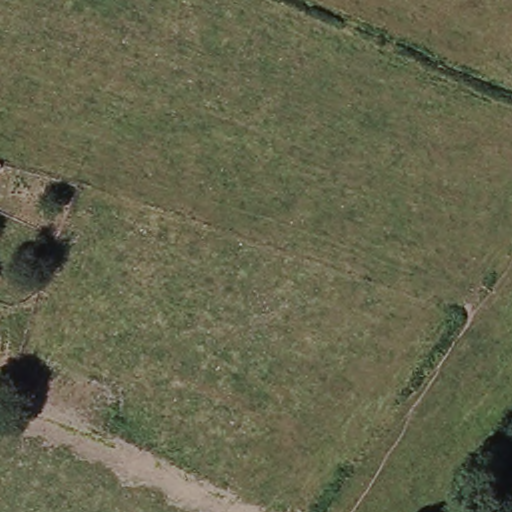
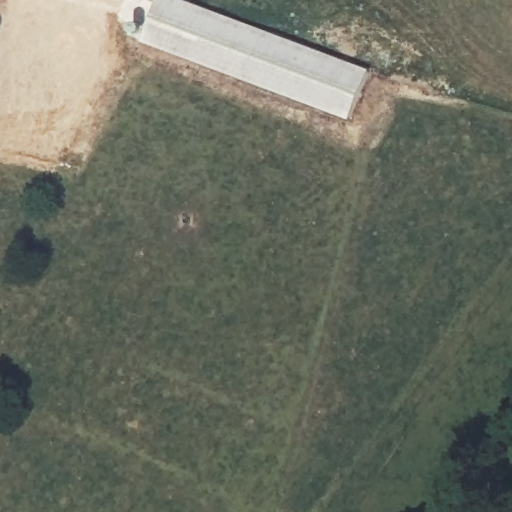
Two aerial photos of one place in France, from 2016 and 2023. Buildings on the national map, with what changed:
new [(158,5),(145,0),(168,0),(372,77),(356,120),(144,40),(158,5)]

